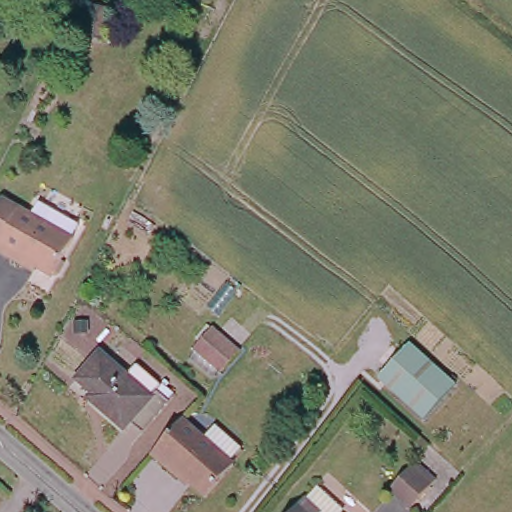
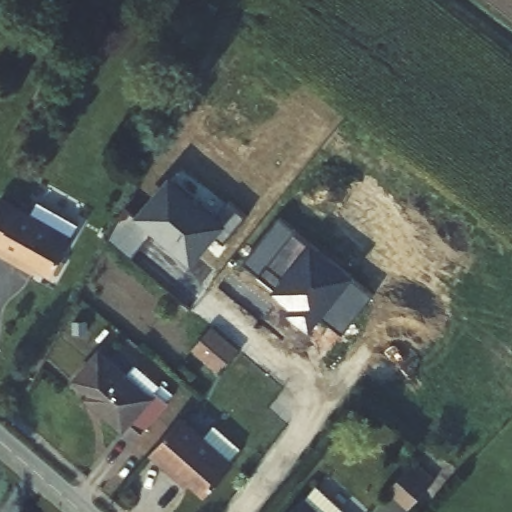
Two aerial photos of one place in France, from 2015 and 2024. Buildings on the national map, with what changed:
unchanged [(111,0),(108,10),(89,7),(91,0),(111,0)]
new [(246,215),(226,241),(218,234),(193,262),(154,227),(136,212),(171,171),(219,213),(229,201),(246,215)]
unchanged [(58,282),(53,278),(51,281),(24,264),(21,269),(0,257),(0,204),(1,202),(29,218),(38,205),(77,227),(69,241),(73,243),(60,265),(65,268),(58,282)]
new [(133,253),(112,235),(128,204),(136,212),(154,227),(133,253)]
new [(246,259),(281,214),(298,227),(296,230),(310,243),(277,284),(246,259)]
new [(277,284),(310,243),(311,241),(354,275),(324,313),(311,329),(288,310),(293,305),(273,289),(277,284)]
new [(374,292),(344,330),(324,313),(354,275),(374,292)]
unchanged [(238,351),(221,372),(193,348),(211,327),(238,351)]
unchanged [(457,383),(426,419),(379,377),(409,342),(457,383)]
unchanged [(78,395),(66,382),(89,356),(115,379),(125,369),(150,390),(152,388),(165,400),(131,437),(119,427),(113,433),(84,409),(75,399),(78,395)]
unchanged [(178,477),(151,453),(181,418),(203,437),(214,423),(241,447),(230,460),(233,463),(204,495),(191,482),(186,486),(178,477)]
unchanged [(435,481),(410,508),(389,488),(414,462),(435,481)]
unchanged [(307,502),(317,512),(298,512),(307,502)]

